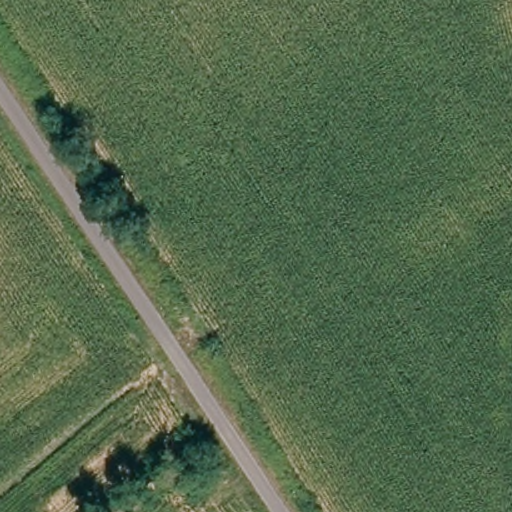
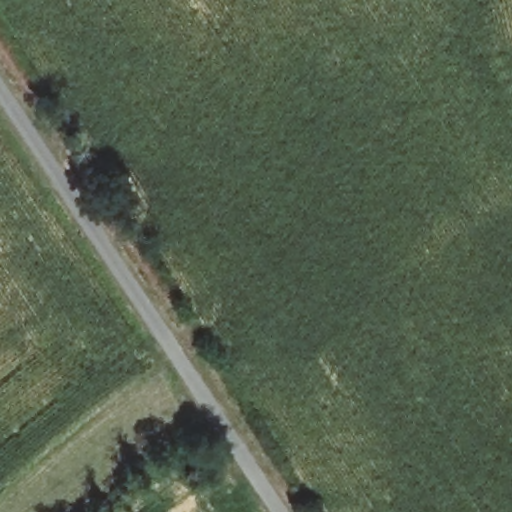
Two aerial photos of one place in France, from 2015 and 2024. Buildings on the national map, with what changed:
[]

